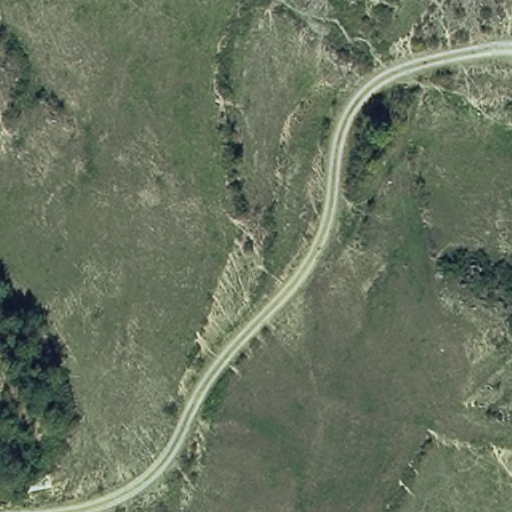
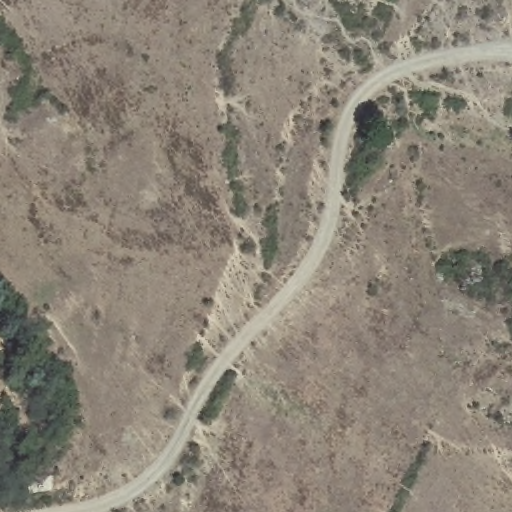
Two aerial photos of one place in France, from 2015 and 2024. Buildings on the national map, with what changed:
unchanged [(27,477),(52,474),(53,491),(29,494),(27,477)]

